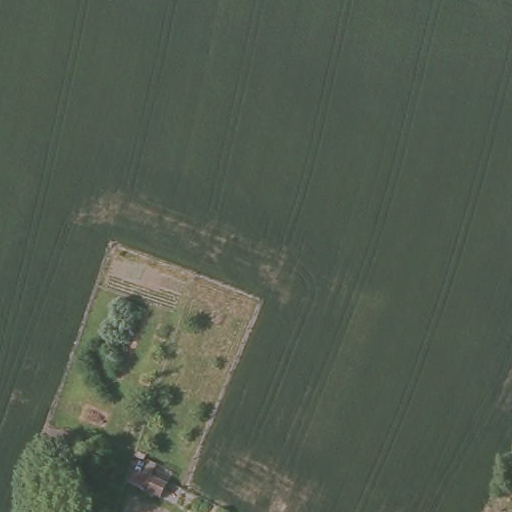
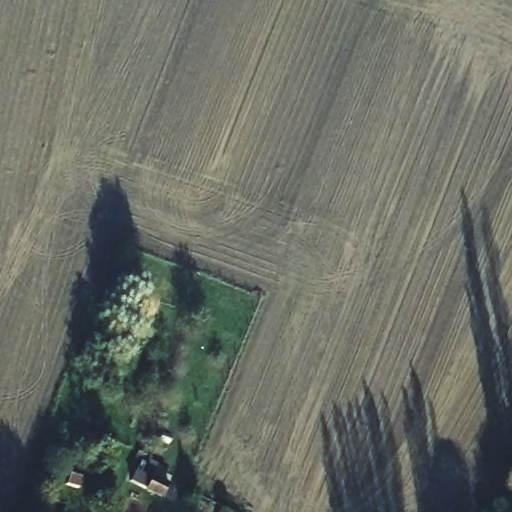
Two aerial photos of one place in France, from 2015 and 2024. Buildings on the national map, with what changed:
[]

